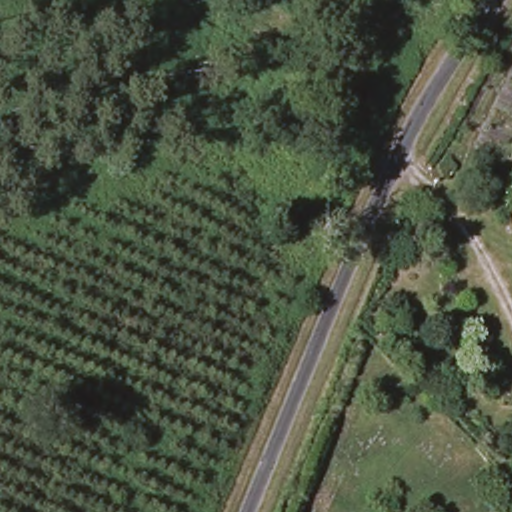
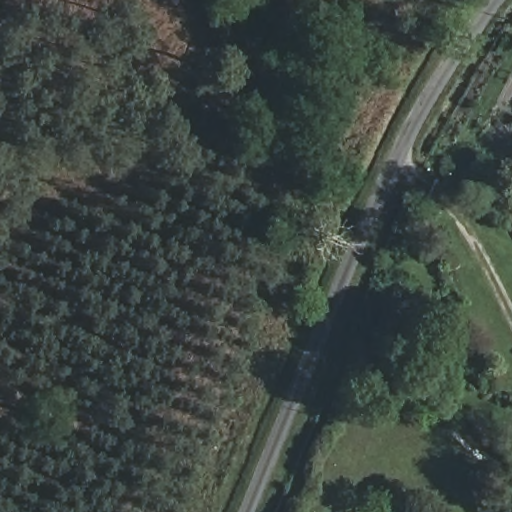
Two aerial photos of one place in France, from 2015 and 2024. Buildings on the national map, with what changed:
unchanged [(507,210),(512,209),(512,229),(507,210)]

